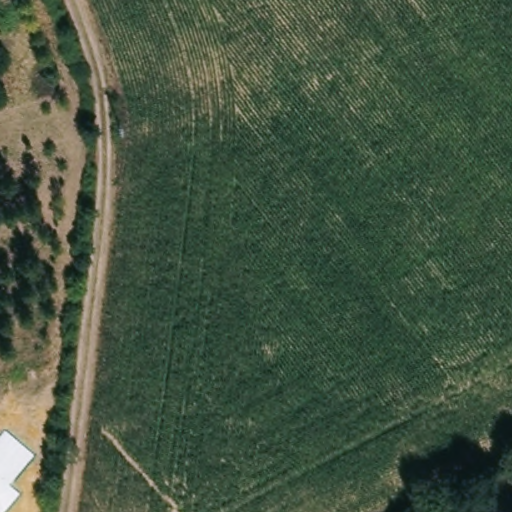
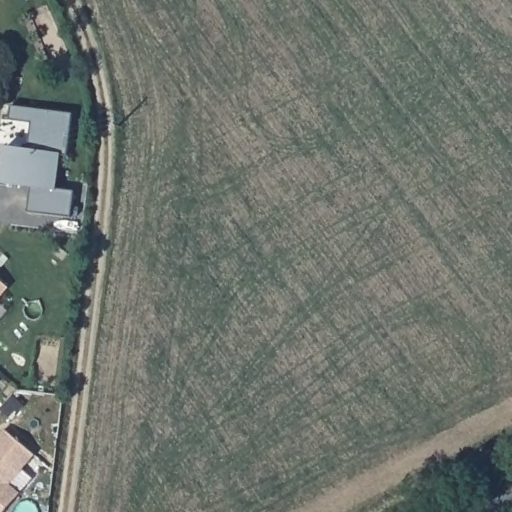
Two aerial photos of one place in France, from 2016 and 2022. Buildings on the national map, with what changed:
new [(71,216),(29,211),(32,186),(1,182),(4,146),(29,149),(33,120),(11,118),(13,107),(73,114),(69,154),(60,153),(57,189),(74,191),(71,216)]
new [(0,296),(0,281),(8,287),(0,296)]
new [(0,448),(0,419),(14,431),(0,448)]
new [(49,469),(24,499),(34,507),(30,512),(0,512),(0,466),(19,444),(49,469)]

